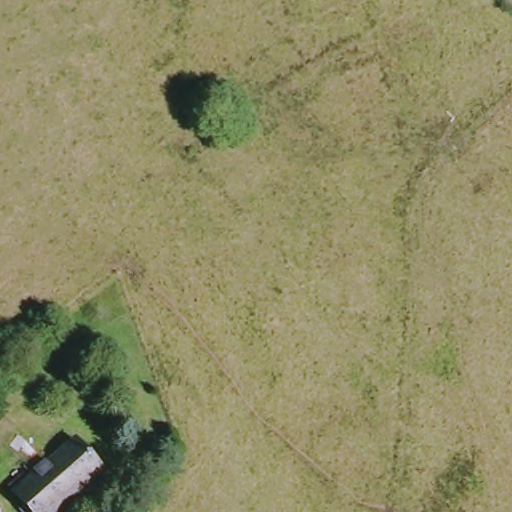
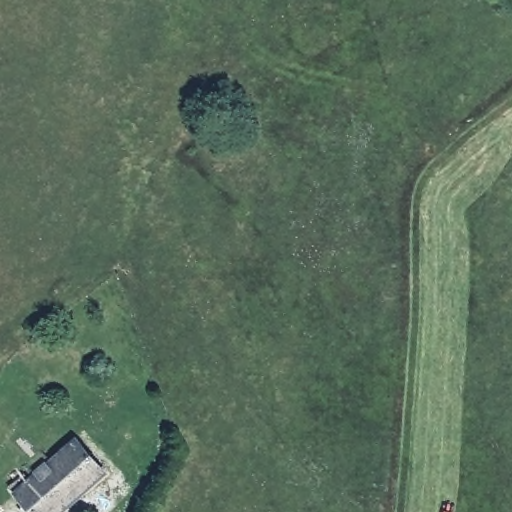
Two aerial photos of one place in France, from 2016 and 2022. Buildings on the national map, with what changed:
unchanged [(41,512),(18,487),(35,473),(40,479),(86,439),(115,473),(70,512),(41,512)]

